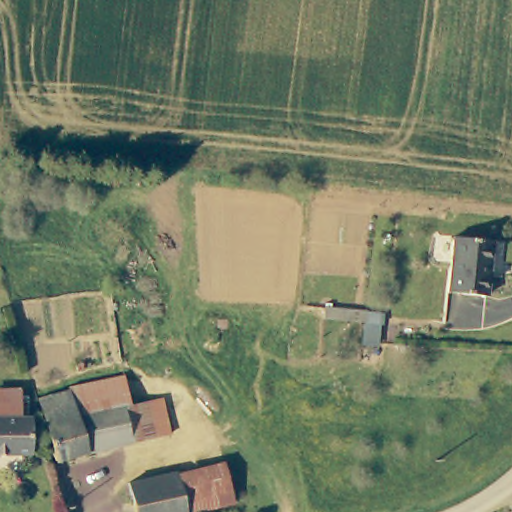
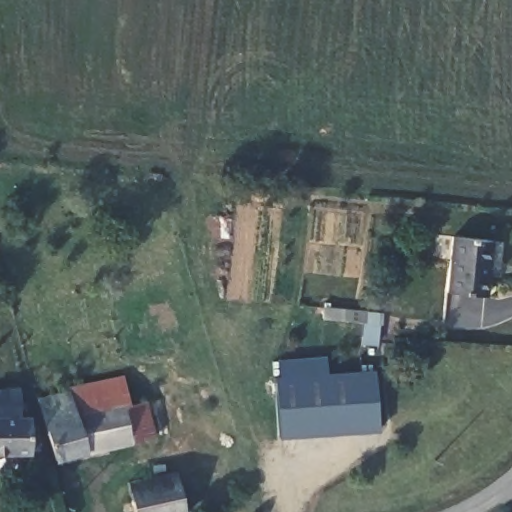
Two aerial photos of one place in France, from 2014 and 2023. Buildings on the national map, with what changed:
unchanged [(493,241),(485,297),(447,292),(455,236),(493,241)]
new [(384,313),(382,325),(379,325),(377,346),(360,344),(362,322),(322,318),(321,306),(384,313)]
new [(273,376),(373,370),(379,432),(276,438),(273,376)]
unchanged [(73,413),(68,389),(67,383),(120,373),(126,401),(73,413)]
unchanged [(166,433),(51,458),(34,394),(68,389),(73,413),(126,401),(157,395),(166,433)]
unchanged [(14,417),(26,417),(26,458),(0,458),(0,392),(14,391),(14,417)]
unchanged [(129,501),(125,483),(222,465),(230,508),(212,512),(181,512),(177,492),(129,501)]
unchanged [(177,492),(181,512),(131,512),(129,501),(177,492)]

